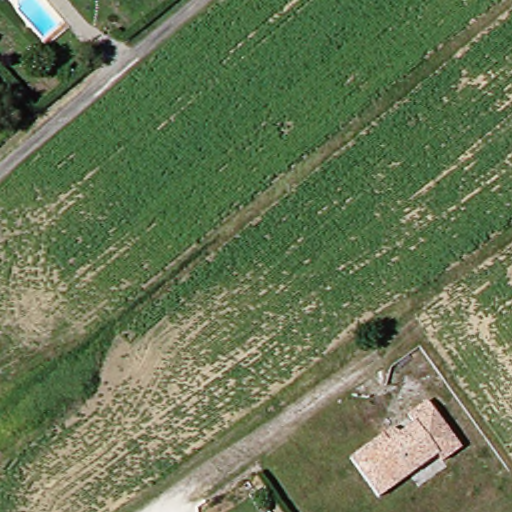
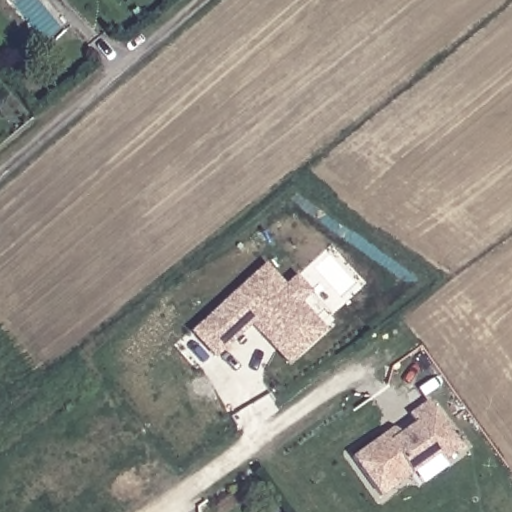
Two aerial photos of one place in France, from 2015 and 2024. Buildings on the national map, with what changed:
new [(303,303),(329,329),(289,366),(252,326),(216,360),(190,333),(266,263),(286,284),(299,275),(315,292),(303,303)]
unchanged [(413,415),(430,402),(464,448),(447,461),(443,454),(385,497),(356,458),(391,432),(398,427),(403,434),(419,423),(413,415)]

